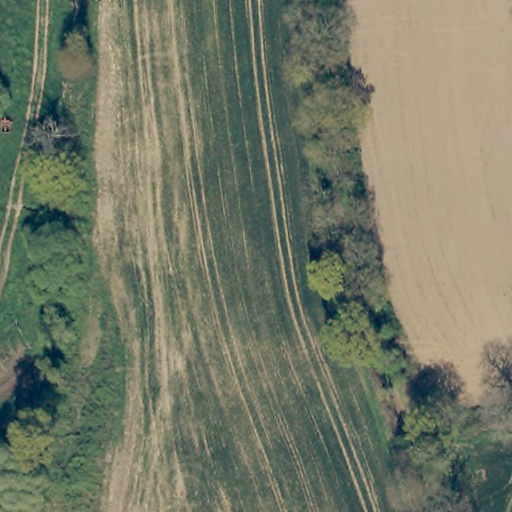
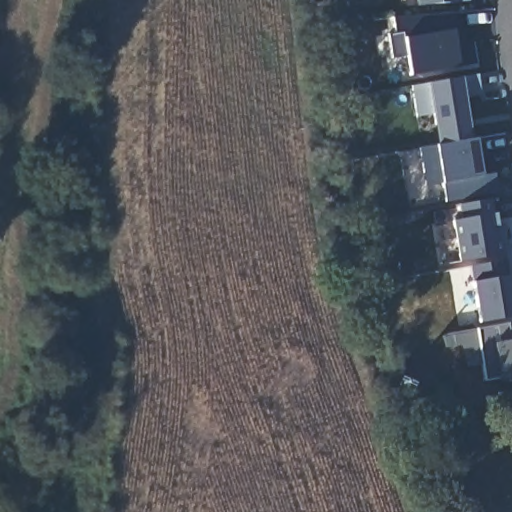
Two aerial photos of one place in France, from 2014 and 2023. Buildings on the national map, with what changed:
new [(460,2),(418,5),(418,0),(459,0),(460,2)]
new [(460,29),(462,44),(471,43),(475,63),(458,67),(410,75),(407,55),(392,57),(388,34),(395,33),(391,18),(458,13),(460,29)]
new [(481,92),(463,96),(474,137),(481,175),(495,173),(498,192),(447,202),(443,183),(428,186),(420,149),(441,144),(428,84),(460,77),(477,74),(481,92)]
new [(496,212),(502,254),(460,261),(453,221),(464,219),(460,204),(491,199),(496,212)]
new [(512,317),(480,322),(471,280),(479,279),(472,266),(508,259),(512,277),(512,317)]
new [(512,380),(500,382),(500,378),(486,380),(476,329),(508,324),(512,336),(512,380)]

